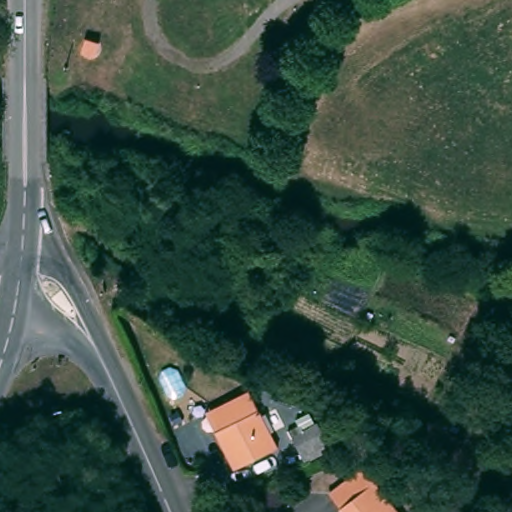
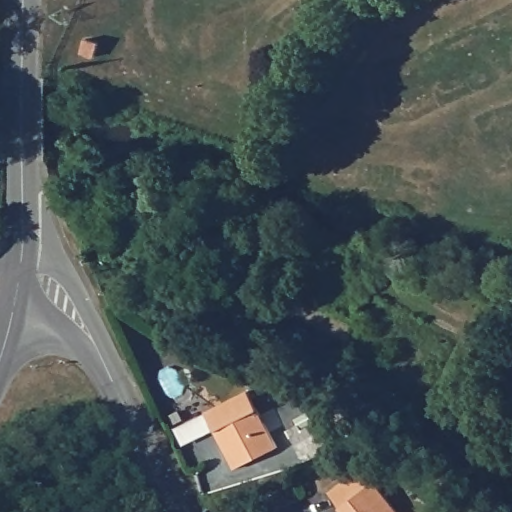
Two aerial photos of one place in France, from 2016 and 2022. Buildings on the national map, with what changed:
unchanged [(99,45),(95,58),(82,53),(87,40),(99,45)]
unchanged [(281,447),(236,468),(226,449),(206,412),(227,402),(250,390),(281,447)]
unchanged [(325,424),(332,438),(309,451),(301,436),(325,424)]
unchanged [(370,471),(397,512),(345,512),(333,495),(370,471)]

